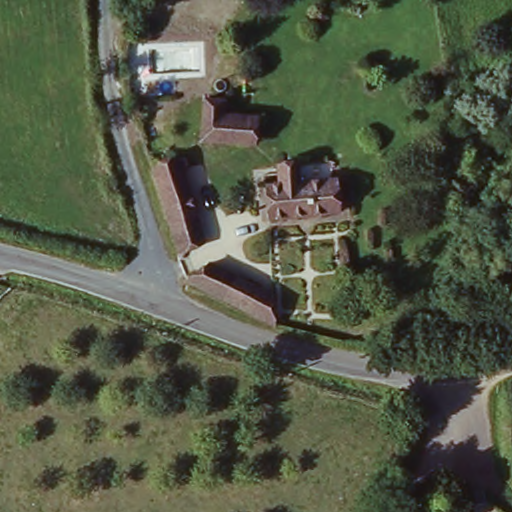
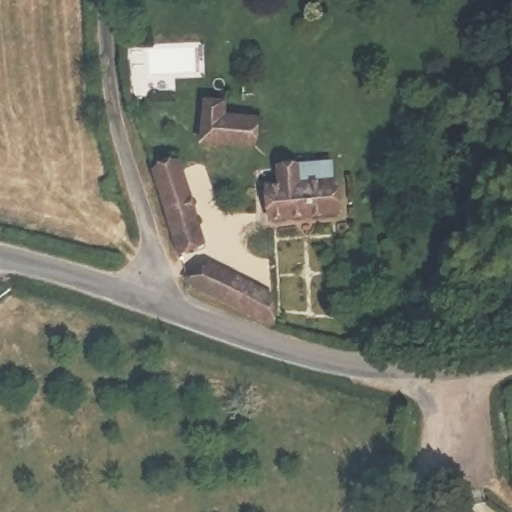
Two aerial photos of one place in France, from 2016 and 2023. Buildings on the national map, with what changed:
unchanged [(254,107),(251,148),(203,145),(207,103),(254,107)]
unchanged [(148,170),(178,162),(187,197),(200,237),(175,245),(148,170)]
unchanged [(269,189),(280,187),(279,170),(300,170),(301,188),(338,185),(340,215),(271,220),(269,189)]
unchanged [(206,263),(279,302),(266,324),(179,284),(206,263)]

